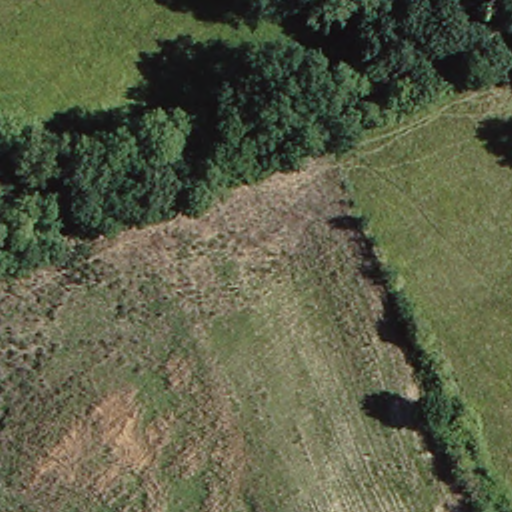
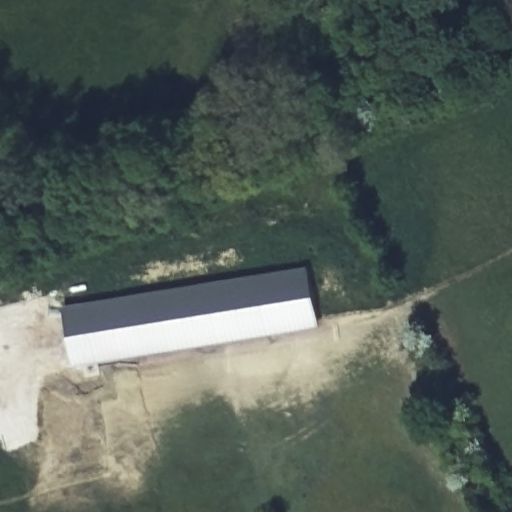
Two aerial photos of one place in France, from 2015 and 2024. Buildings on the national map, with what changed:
new [(319,325),(71,366),(63,306),(310,264),(319,325)]

